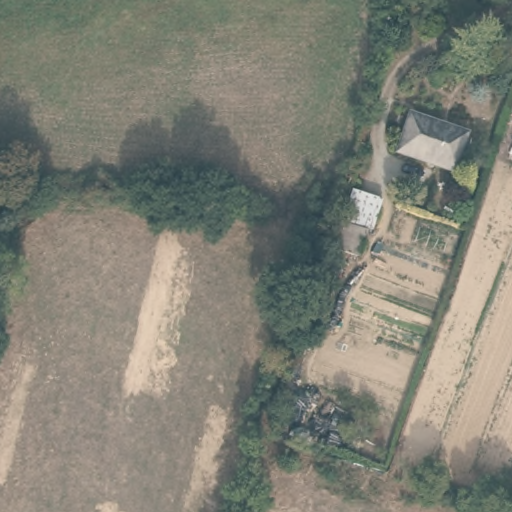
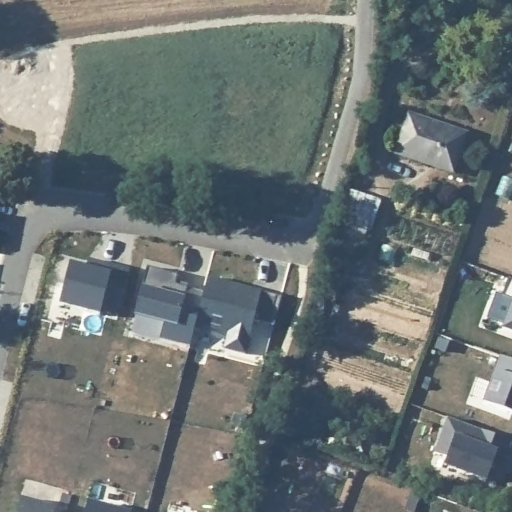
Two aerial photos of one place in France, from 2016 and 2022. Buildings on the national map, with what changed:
unchanged [(466,134),(453,172),(396,153),(409,114),(466,134)]
unchanged [(382,200),(372,230),(342,220),(352,190),(382,200)]
unchanged [(367,231),(358,258),(336,251),(344,224),(367,231)]
new [(87,266),(89,258),(112,264),(130,269),(119,312),(102,307),(100,314),(59,303),(70,262),(87,266)]
new [(147,266),(178,274),(176,284),(187,287),(187,289),(203,293),(195,323),(190,344),(161,337),(165,321),(135,313),(147,266)]
new [(208,276),(251,288),(260,290),(277,294),(282,296),(274,325),(269,324),(254,320),(245,353),(224,348),(228,332),(195,323),(203,293),(208,276)]
new [(509,278),(512,279),(512,299),(502,295),(509,278)]
new [(512,305),(512,332),(503,328),(512,305)]
new [(512,360),(512,413),(483,403),(501,356),(512,360)]
new [(448,417),(512,441),(501,470),(492,466),(487,480),(445,464),(447,457),(435,453),(448,417)]
new [(55,506),(54,512),(19,512),(22,498),(55,506)]
new [(129,512),(85,512),(88,501),(129,512)]

